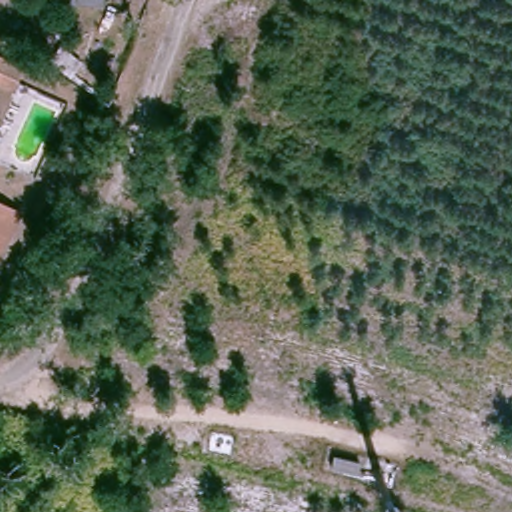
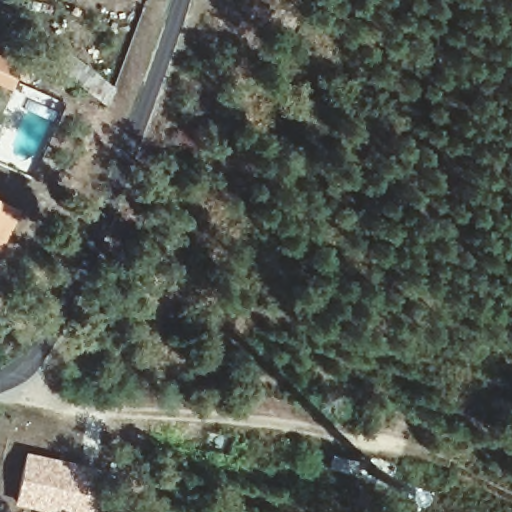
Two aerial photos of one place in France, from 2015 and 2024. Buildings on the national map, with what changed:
unchanged [(45,3),(45,0),(103,0),(103,4),(45,3)]
unchanged [(8,85),(0,81),(0,57),(16,64),(8,85)]
unchanged [(0,239),(0,195),(19,205),(3,240),(0,239)]
new [(27,452),(110,470),(100,512),(44,512),(15,505),(27,452)]

